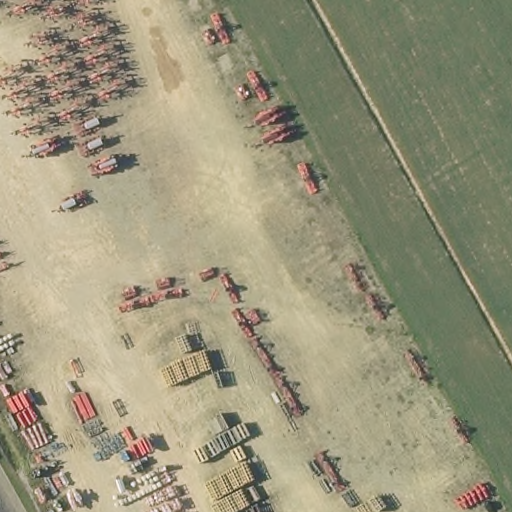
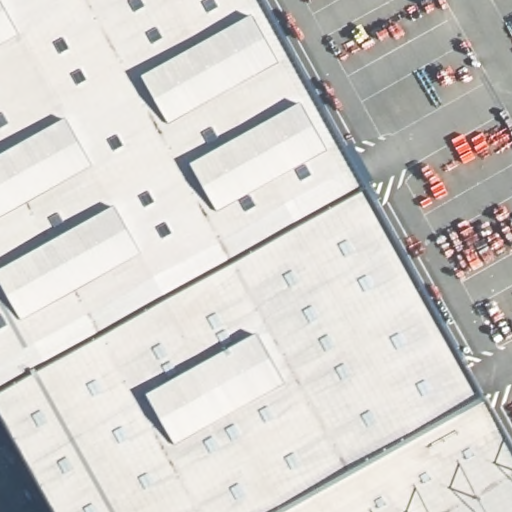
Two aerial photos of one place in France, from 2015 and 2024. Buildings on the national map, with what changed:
new [(382,201),(15,395),(0,404),(0,0),(269,0),(382,201)]
new [(512,439),(512,512),(79,512),(15,395),(382,201),(512,439)]

